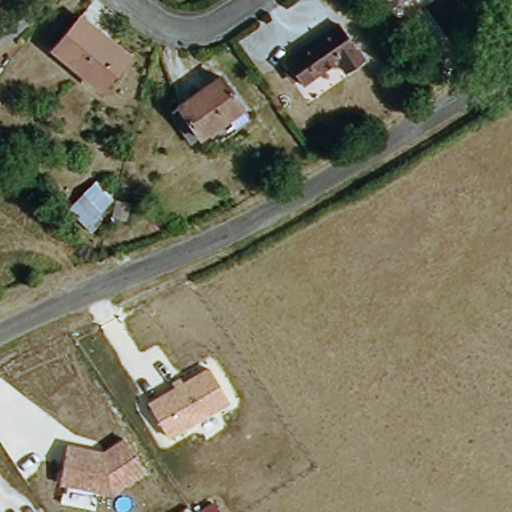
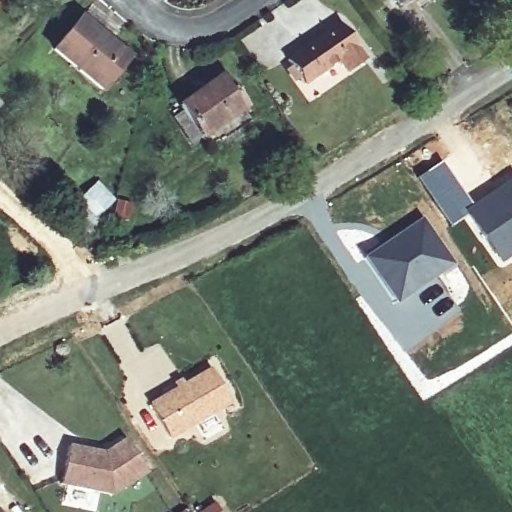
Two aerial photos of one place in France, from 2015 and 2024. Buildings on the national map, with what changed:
unchanged [(397,0),(401,0),(398,1),(397,0)]
unchanged [(108,44),(110,41),(128,57),(102,90),(57,51),(82,21),(108,44)]
unchanged [(303,85),(287,60),(340,25),(365,60),(349,71),(340,60),(303,85)]
unchanged [(245,107),(202,137),(180,105),(222,75),(245,107)]
new [(4,102),(0,107),(0,99),(4,102)]
new [(441,159),(471,202),(460,210),(464,216),(449,227),(415,177),(441,159)]
new [(512,174),(512,256),(499,265),(484,246),(464,216),(460,210),(471,202),(512,174)]
new [(420,216),(455,265),(394,305),(360,256),(420,216)]
unchanged [(231,405),(170,440),(148,403),(210,368),(231,405)]
unchanged [(105,450),(125,436),(148,472),(110,496),(59,485),(68,445),(105,450)]
new [(217,501),(223,512),(200,512),(217,501)]
new [(187,509),(188,512),(182,512),(187,509)]

